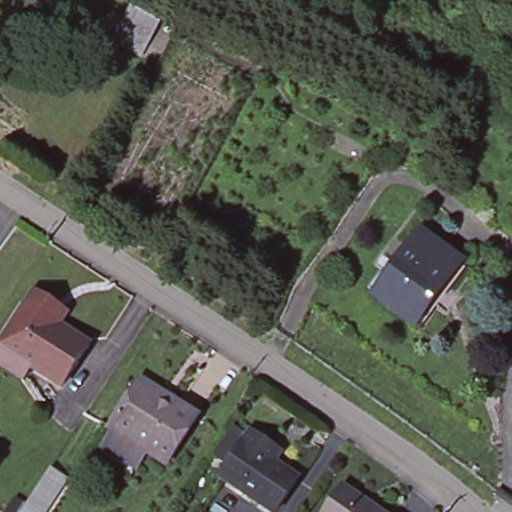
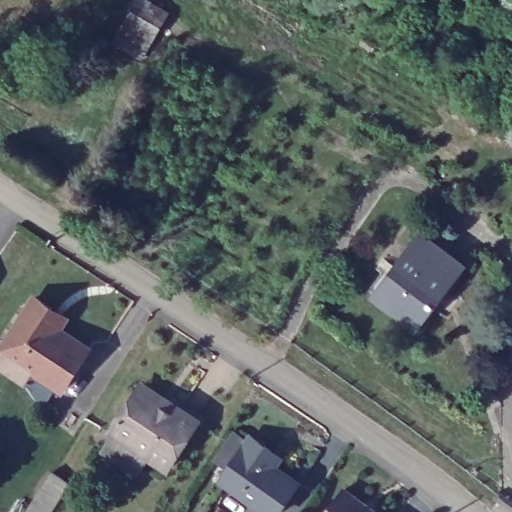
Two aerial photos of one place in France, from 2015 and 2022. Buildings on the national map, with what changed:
unchanged [(137,6),(163,21),(145,54),(137,66),(111,51),(118,39),(137,6)]
unchanged [(459,263),(432,300),(435,302),(418,324),(378,294),(422,235),(459,263)]
unchanged [(30,303),(34,296),(65,317),(57,328),(88,348),(62,389),(30,369),(22,381),(0,367),(0,350),(30,303)]
unchanged [(120,430),(117,428),(147,380),(202,416),(172,462),(153,451),(143,467),(110,446),(120,430)]
unchanged [(270,512),(224,480),(253,436),(274,450),(282,456),(276,465),(300,481),(279,512),(270,512)]
unchanged [(50,471),(67,482),(47,512),(23,512),(45,479),(50,471)]
unchanged [(380,512),(327,512),(343,487),(380,512)]

